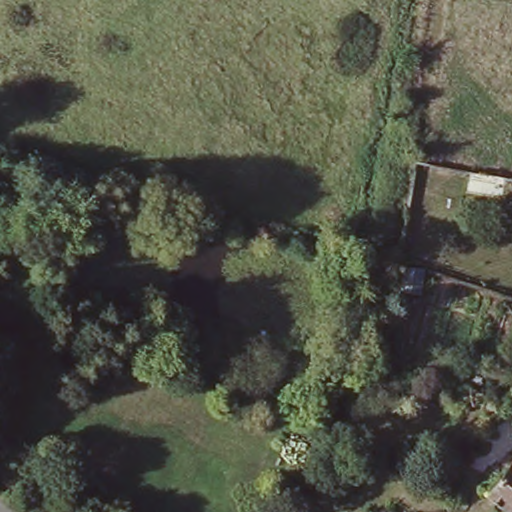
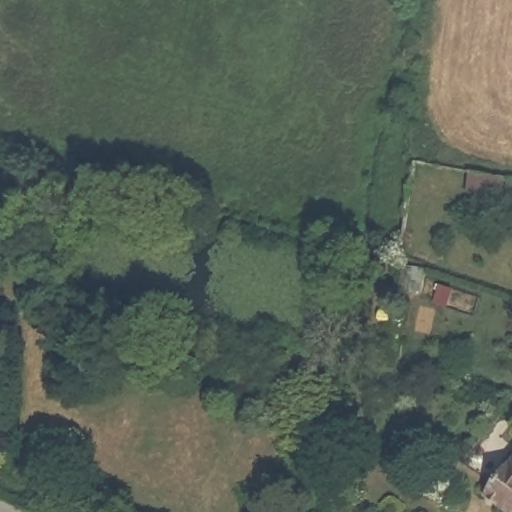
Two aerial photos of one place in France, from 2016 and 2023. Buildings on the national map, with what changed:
unchanged [(452,476),(475,446),(505,468),(512,458),(512,512),(499,512),(452,476)]

